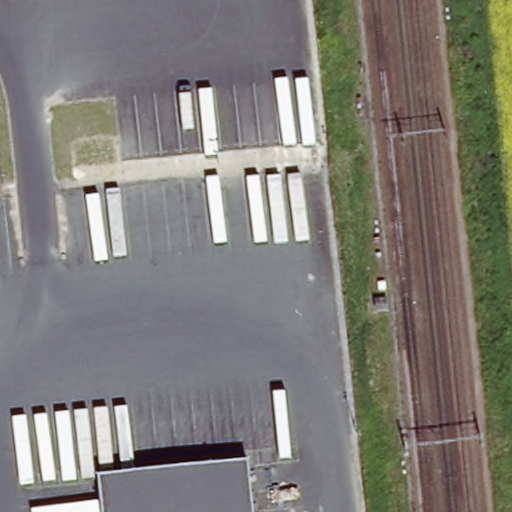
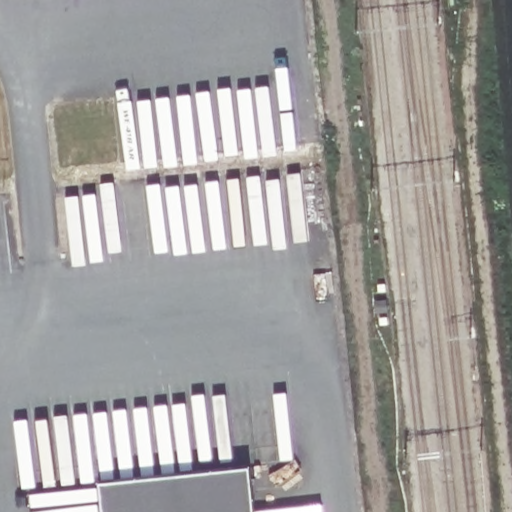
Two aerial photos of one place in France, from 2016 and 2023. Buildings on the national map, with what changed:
unchanged [(248,467),(253,512),(103,512),(100,483),(248,467)]

